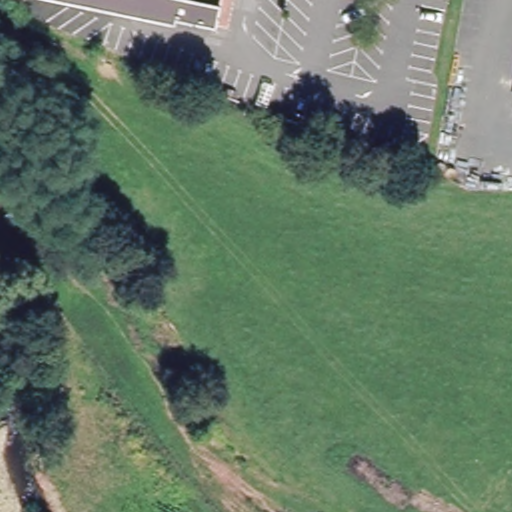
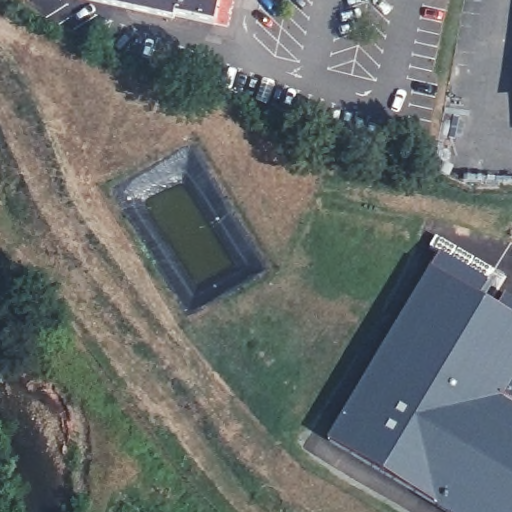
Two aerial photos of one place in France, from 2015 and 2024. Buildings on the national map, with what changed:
unchanged [(224,17),(131,0),(227,0),(224,17)]
new [(438,252),(487,280),(480,294),(495,305),(503,292),(512,297),(512,512),(442,512),(413,493),(325,441),(385,338),(438,252)]

